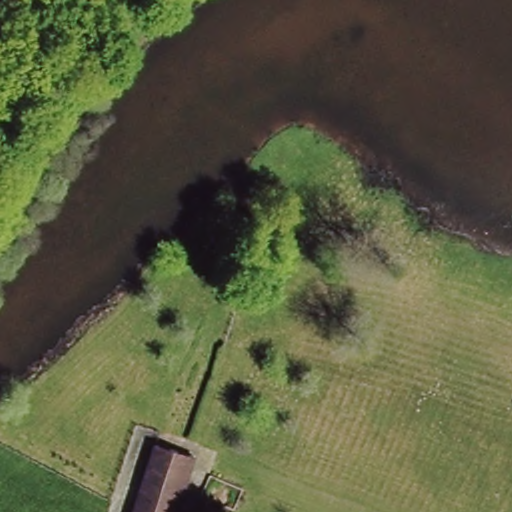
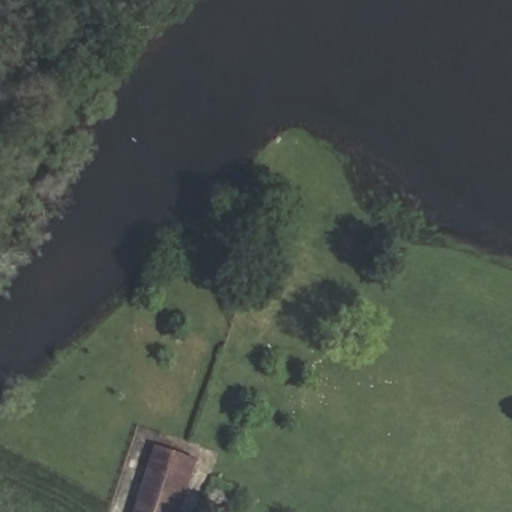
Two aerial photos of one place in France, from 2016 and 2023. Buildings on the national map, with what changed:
unchanged [(197,449),(178,512),(130,512),(155,440),(197,449)]
unchanged [(248,487),(238,512),(232,512),(197,496),(210,470),(248,487)]

